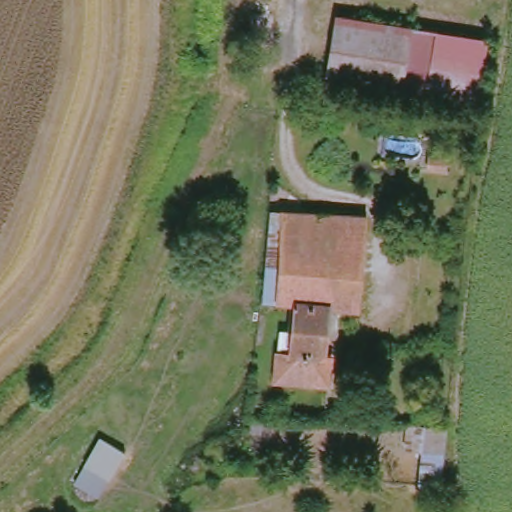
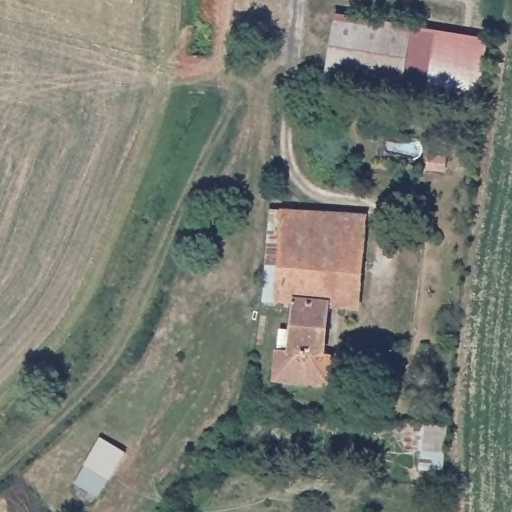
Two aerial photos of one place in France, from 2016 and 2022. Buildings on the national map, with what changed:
unchanged [(325,85),(336,18),(435,31),(424,98),(325,85)]
unchanged [(487,39),(477,105),(424,98),(435,31),(487,39)]
unchanged [(370,218),(363,310),(333,307),(329,355),(336,355),(334,384),(281,380),(283,351),(285,351),(286,332),(298,333),(301,304),(269,302),(277,213),(370,218)]
unchanged [(445,428),(439,487),(418,485),(420,449),(407,449),(410,426),(445,428)]
unchanged [(128,454),(100,501),(74,486),(100,438),(128,454)]

